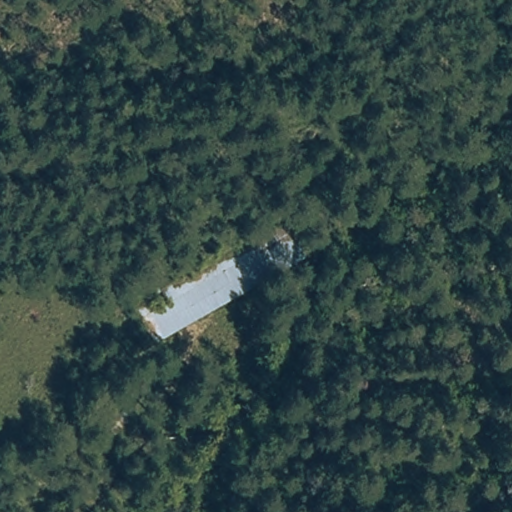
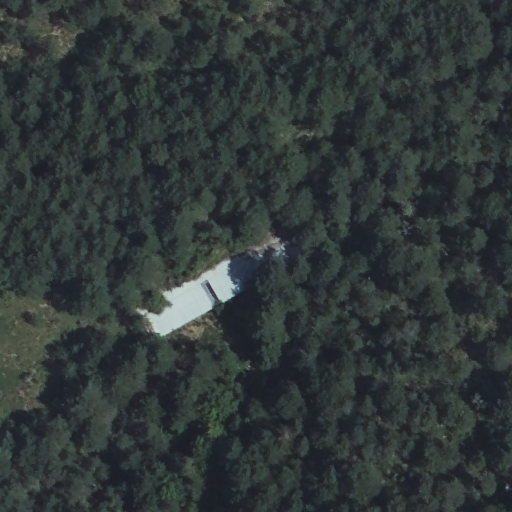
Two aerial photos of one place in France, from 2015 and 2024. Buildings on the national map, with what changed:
unchanged [(137,308),(287,225),(308,258),(155,345),(137,308)]

